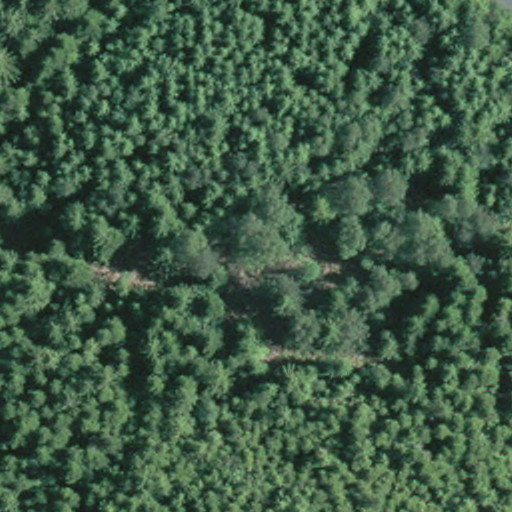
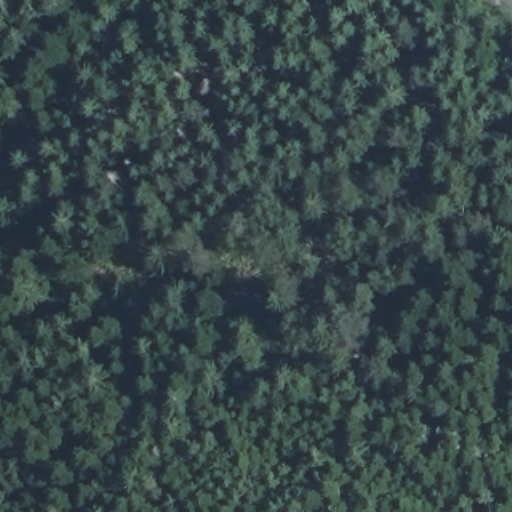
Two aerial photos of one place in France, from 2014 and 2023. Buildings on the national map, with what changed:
[]

